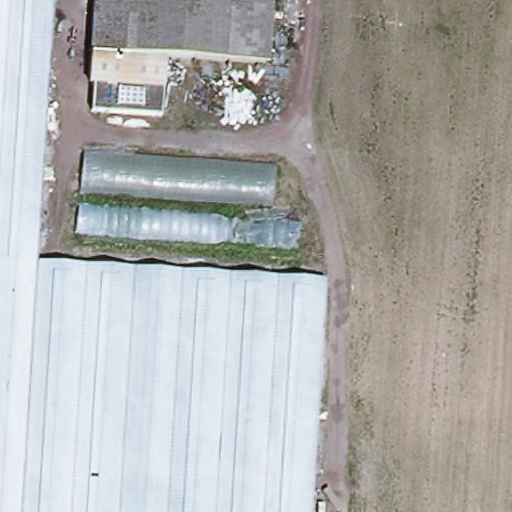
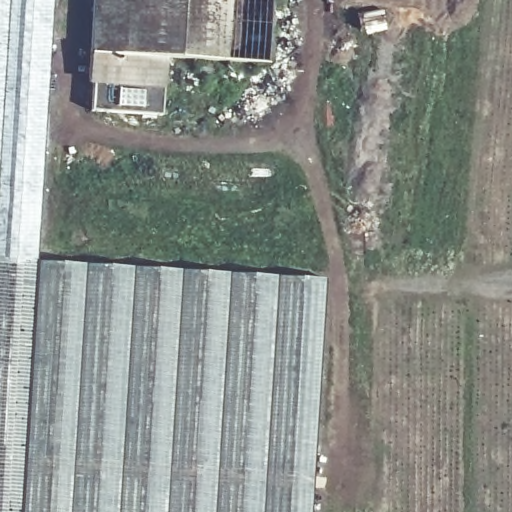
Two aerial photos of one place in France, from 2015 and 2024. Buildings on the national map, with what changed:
unchanged [(35,263),(317,285),(300,512),(0,512),(0,0),(58,0),(35,263)]
unchanged [(95,0),(261,0),(256,61),(91,46),(95,0)]
unchanged [(167,53),(162,115),(87,109),(91,46),(167,53)]
demolished [(274,165),(272,207),(298,209),(295,251),(77,237),(83,152),(274,165)]

